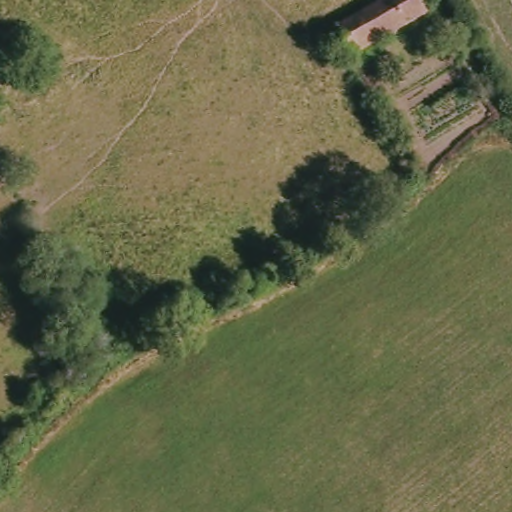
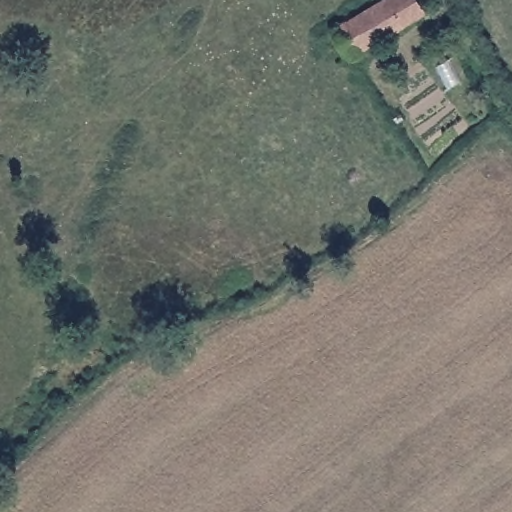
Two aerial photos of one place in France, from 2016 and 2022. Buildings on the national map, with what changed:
unchanged [(334,31),(343,25),(380,0),(439,0),(442,6),(361,57),(351,64),(334,31)]

